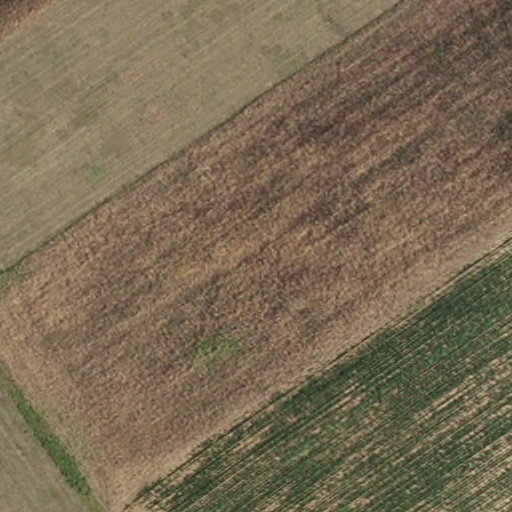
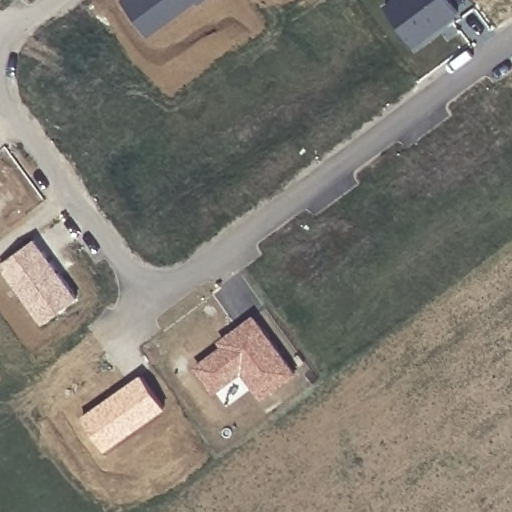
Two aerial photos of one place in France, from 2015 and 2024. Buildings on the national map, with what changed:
new [(197,1),(148,37),(122,0),(205,0),(200,4),(197,1)]
new [(415,47),(385,5),(392,0),(449,0),(460,15),(415,47)]
new [(0,267),(0,263),(36,239),(79,298),(42,325),(0,267)]
new [(221,346),(217,342),(254,315),(297,373),(261,401),(242,373),(214,395),(192,367),(221,346)]
new [(81,417),(142,374),(167,408),(106,451),(81,417)]

